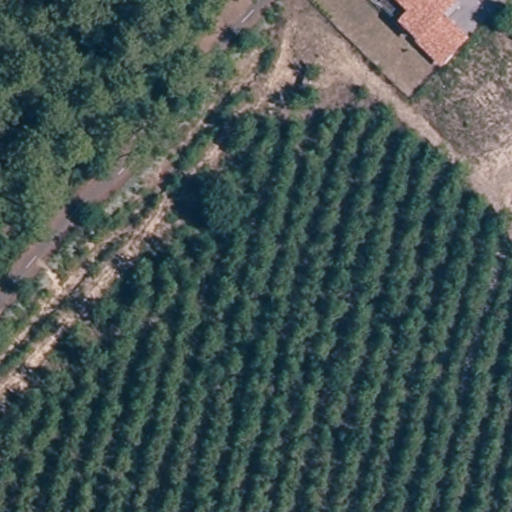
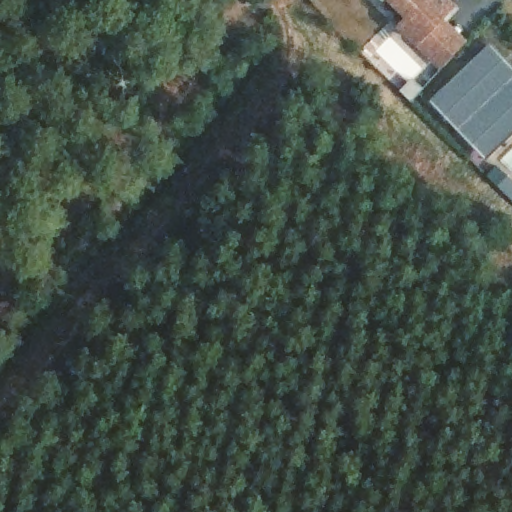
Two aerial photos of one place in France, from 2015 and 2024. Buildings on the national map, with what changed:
unchanged [(387,0),(390,0),(388,1),(387,0)]
unchanged [(457,6),(445,18),(422,41),(407,27),(416,18),(397,0),(451,0),(457,6)]
unchanged [(445,18),(468,41),(445,64),(422,41),(445,18)]
new [(512,67),(512,134),(487,158),(432,100),(492,45),(512,67)]

